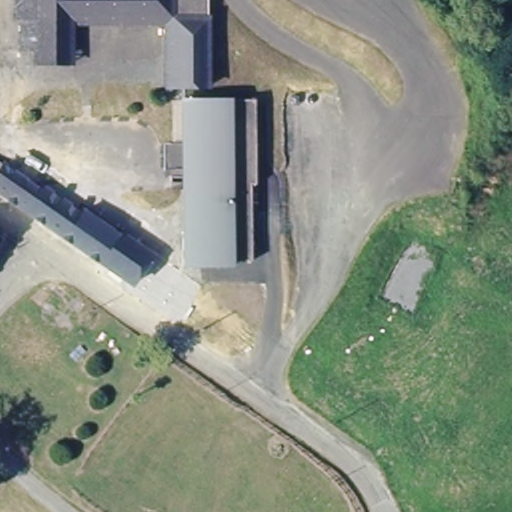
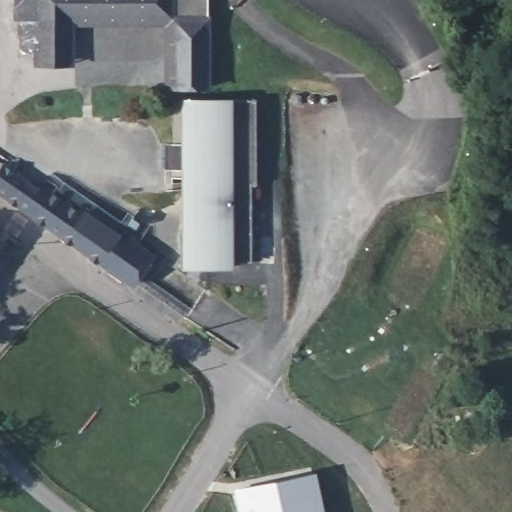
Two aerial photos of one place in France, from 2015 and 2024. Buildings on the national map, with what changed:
unchanged [(104,14),(74,13),(43,14),(43,27),(26,28),(27,45),(19,45),(19,15),(10,16),(10,0),(107,0),(104,14)]
unchanged [(210,78),(173,77),(174,15),(104,14),(107,0),(210,0),(210,78)]
unchanged [(74,64),(27,65),(27,45),(26,28),(43,27),(43,14),(74,13),(74,64)]
unchanged [(190,263),(190,191),(170,189),(172,146),(188,146),(189,102),(259,99),(257,260),(190,263)]
unchanged [(0,198),(0,167),(24,184),(29,178),(66,204),(70,197),(109,224),(90,256),(0,198)]
unchanged [(142,292),(90,256),(109,224),(113,220),(164,253),(142,292)]
unchanged [(0,241),(0,233),(4,234),(0,241)]
new [(316,472),(325,512),(238,512),(234,490),(316,472)]

